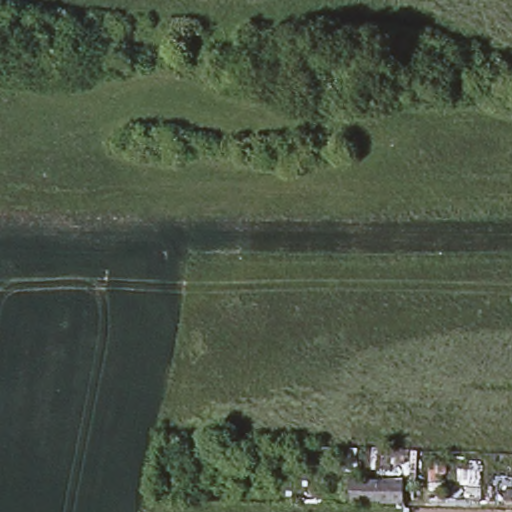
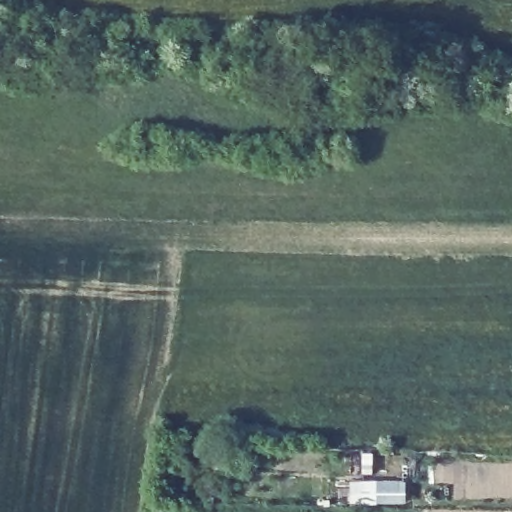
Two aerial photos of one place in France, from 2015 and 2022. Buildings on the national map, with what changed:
unchanged [(346,508),(347,478),(402,476),(400,504),(346,508)]

